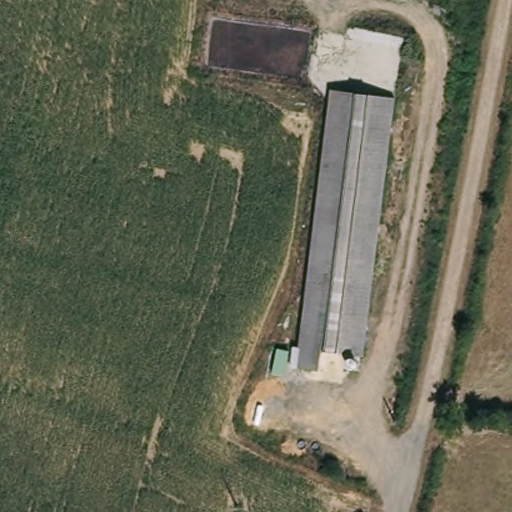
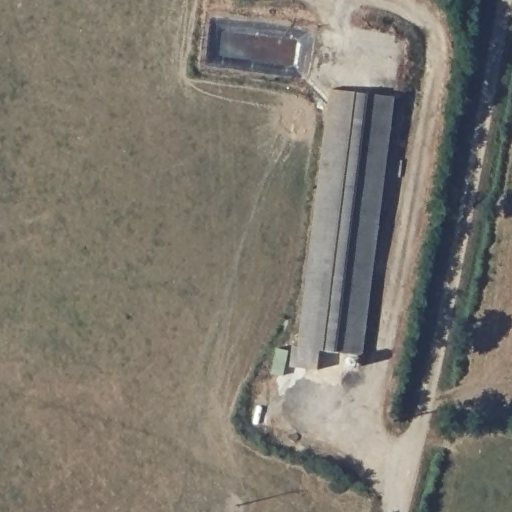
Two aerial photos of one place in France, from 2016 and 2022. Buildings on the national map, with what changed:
unchanged [(316,350),(314,371),(293,366),(329,115),(331,99),(332,88),(389,95),(387,107),(385,124),(353,355),(316,350)]

